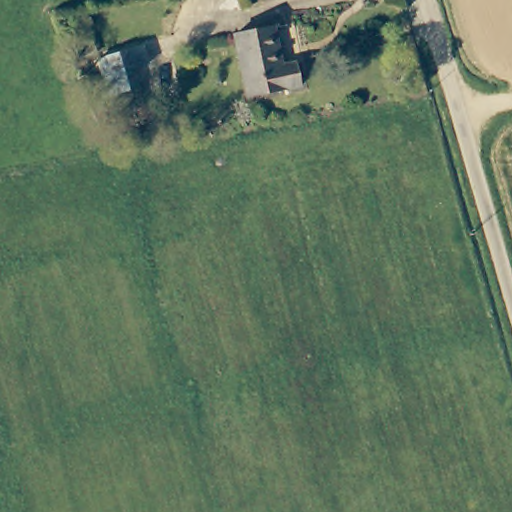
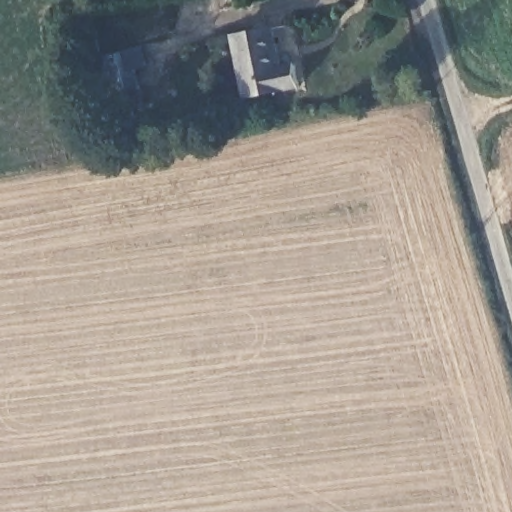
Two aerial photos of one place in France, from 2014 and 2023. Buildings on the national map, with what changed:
unchanged [(282,65),(296,63),(300,86),(247,96),(234,34),(275,26),(282,65)]
unchanged [(96,59),(125,50),(138,89),(111,98),(96,59)]

